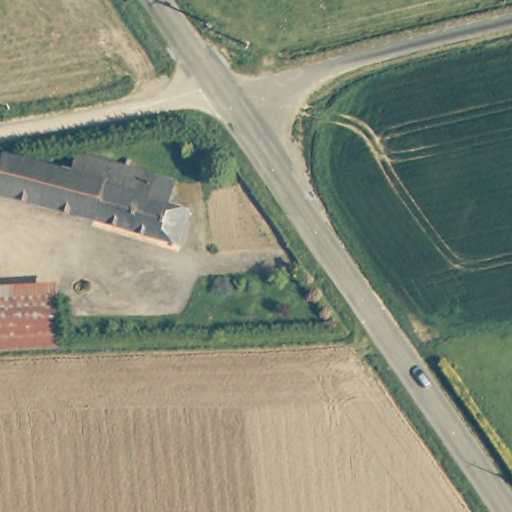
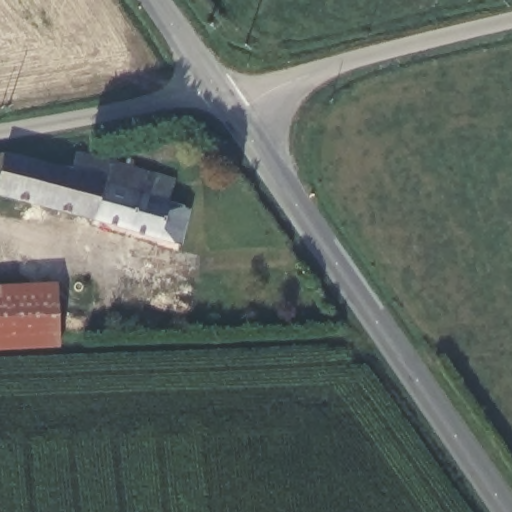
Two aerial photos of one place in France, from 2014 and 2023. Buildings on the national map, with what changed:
unchanged [(71,174),(75,160),(171,187),(165,209),(184,215),(175,249),(0,200),(0,154),(4,153),(71,174)]
unchanged [(58,349),(0,351),(0,290),(54,289),(58,349)]

